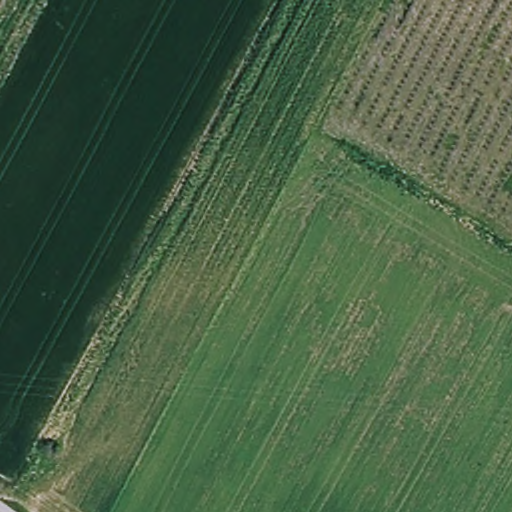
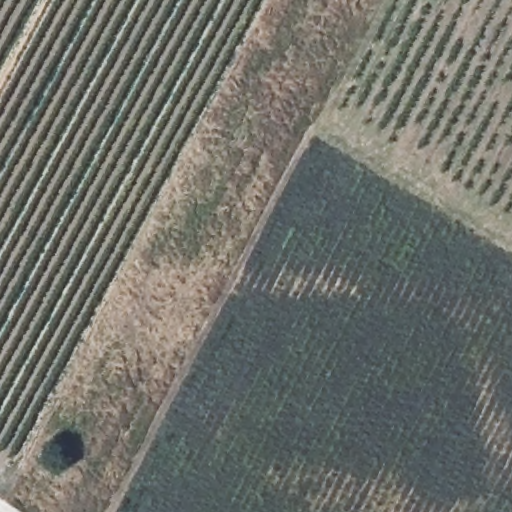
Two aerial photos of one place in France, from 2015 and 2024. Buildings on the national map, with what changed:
[]

